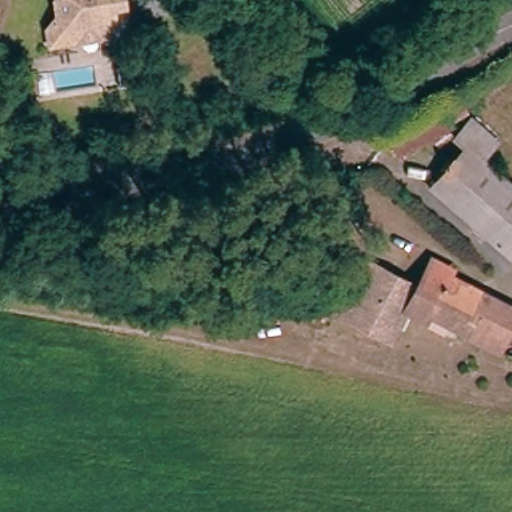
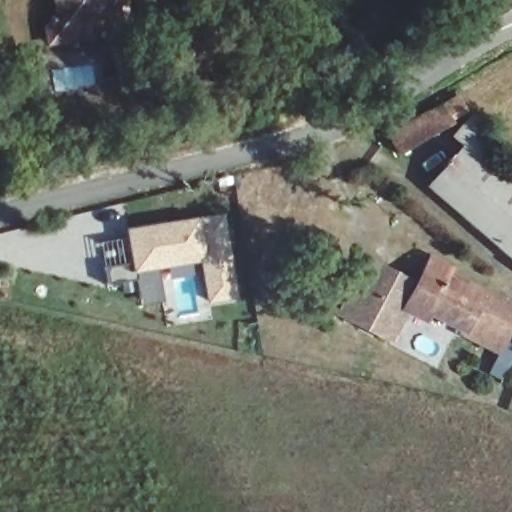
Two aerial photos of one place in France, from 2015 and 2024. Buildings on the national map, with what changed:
unchanged [(51,29),(60,16),(58,0),(126,0),(129,17),(131,30),(113,34),(73,41),(54,45),(51,29)]
unchanged [(378,130),(455,88),(470,110),(394,155),(378,130)]
unchanged [(434,194),(467,153),(453,141),(474,123),(498,143),(482,159),(509,183),(472,225),(434,194)]
unchanged [(472,225),(509,183),(512,186),(512,260),(472,225)]
new [(132,265),(126,230),(200,219),(225,215),(239,299),(208,304),(200,264),(158,271),(164,303),(143,306),(139,282),(110,286),(107,270),(132,265)]
unchanged [(478,349),(452,334),(452,330),(418,316),(414,322),(394,309),(406,287),(421,259),(437,269),(433,278),(503,309),(512,314),(512,342),(508,354),(490,352),(478,349)]
unchanged [(385,274),(406,287),(394,309),(380,337),(377,340),(367,335),(349,325),(329,314),(358,260),(385,274)]

